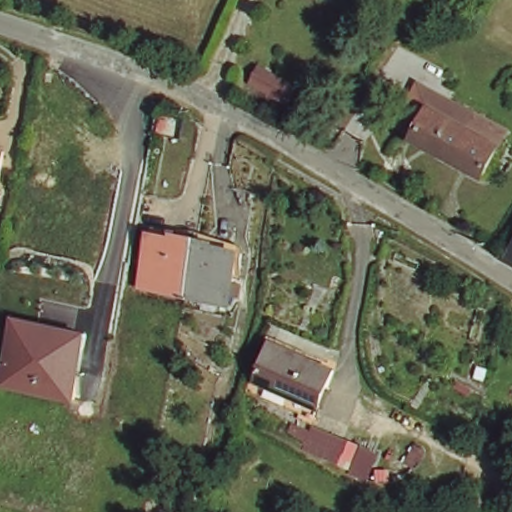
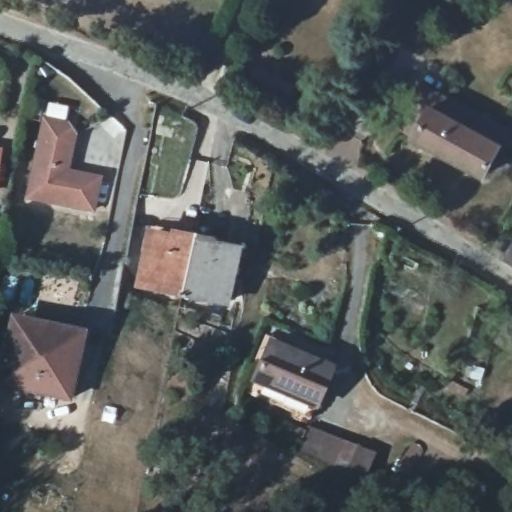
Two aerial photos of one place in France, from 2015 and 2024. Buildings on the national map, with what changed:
unchanged [(393,0),(390,4),(384,0),(393,0)]
unchanged [(421,146),(425,140),(407,130),(429,89),(448,100),(458,105),(483,119),(475,133),(512,153),(512,158),(495,187),(421,146)]
new [(70,170),(103,176),(94,213),(26,199),(42,116),(66,121),(77,136),(70,170)]
unchanged [(0,184),(0,155),(5,156),(0,184)]
unchanged [(176,236),(178,230),(193,234),(211,238),(211,241),(236,246),(225,299),(182,290),(144,282),(153,231),(176,236)]
unchanged [(505,261),(512,249),(512,265),(505,261)]
unchanged [(59,355),(65,323),(8,312),(11,299),(82,313),(73,358),(59,355)]
unchanged [(0,367),(0,349),(8,312),(65,323),(59,355),(73,358),(68,381),(0,367)]
unchanged [(336,362),(320,399),(257,372),(273,335),(336,362)]
demolished [(286,428),(291,417),(310,425),(305,436),(286,428)]
new [(365,479),(298,452),(305,436),(286,428),(291,417),(310,425),(377,450),(365,479)]

